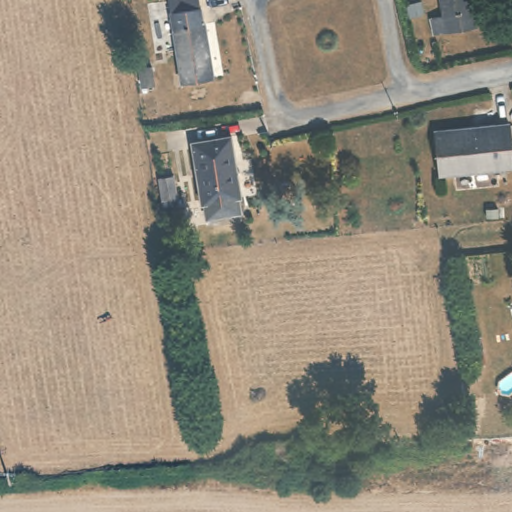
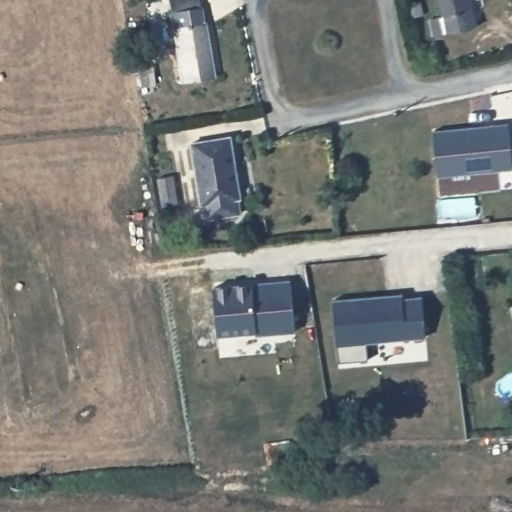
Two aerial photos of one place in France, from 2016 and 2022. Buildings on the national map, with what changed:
unchanged [(432,33),(429,16),(445,13),(442,0),(472,0),(475,12),(477,24),(465,26),(432,33)]
unchanged [(177,76),(174,50),(171,25),(201,21),(204,46),(207,74),(177,76)]
unchanged [(152,73),(155,92),(140,95),(137,75),(152,73)]
unchanged [(512,159),(512,167),(462,172),(460,129),(507,124),(512,159)]
unchanged [(436,175),(431,131),(460,129),(462,172),(436,175)]
unchanged [(233,142),(242,204),(203,208),(195,146),(233,142)]
unchanged [(170,177),(173,197),(158,200),(155,180),(170,177)]
new [(256,335),(256,333),(216,336),(212,286),(291,280),(295,331),(256,335)]
new [(367,342),(369,358),(339,361),(331,300),(402,293),(403,297),(421,295),(426,336),(367,342)]
unchanged [(286,443),(287,447),(288,470),(265,471),(262,448),(262,446),(286,443)]

